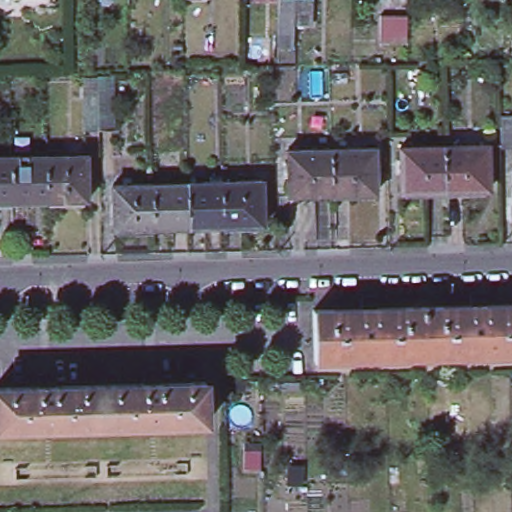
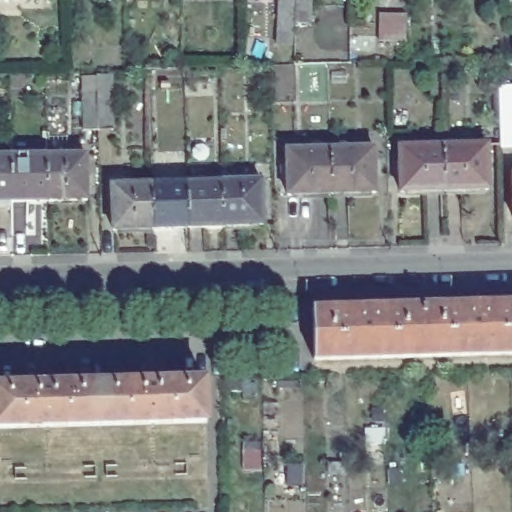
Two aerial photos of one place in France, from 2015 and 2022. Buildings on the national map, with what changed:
unchanged [(278,50),(277,35),(280,0),(296,0),(311,0),(310,35),(295,35),(295,50),(278,50)]
unchanged [(407,14),(407,42),(381,42),(382,15),(407,14)]
unchanged [(83,93),(100,92),(99,73),(114,72),(115,130),(100,130),(83,131),(83,93)]
unchanged [(500,120),(512,120),(512,152),(501,153),(500,120)]
unchanged [(489,142),(487,187),(445,188),(445,143),(489,142)]
unchanged [(445,143),(445,188),(401,189),(400,144),(445,143)]
unchanged [(374,144),(375,189),(331,190),(331,151),(331,145),(374,144)]
unchanged [(286,146),(331,145),(331,151),(331,190),(287,191),(286,146)]
unchanged [(87,152),(87,198),(47,198),(47,189),(47,153),(87,152)]
unchanged [(47,189),(47,198),(12,199),(12,185),(12,154),(47,153),(47,189)]
unchanged [(12,154),(12,185),(12,199),(0,199),(0,155),(12,154)]
unchanged [(217,224),(217,178),(255,177),(257,222),(217,224)]
unchanged [(183,226),(182,183),(181,179),(217,178),(217,224),(183,226)]
unchanged [(148,227),(148,214),(147,180),(181,179),(182,183),(183,226),(148,227)]
unchanged [(110,229),(108,181),(147,180),(148,214),(148,227),(110,229)]
unchanged [(362,297),(376,296),(376,305),(471,302),(470,293),(485,293),(485,302),(512,301),(512,353),(315,358),(313,307),(362,305),(362,297)]
unchanged [(35,389),(38,389),(37,379),(52,378),(53,388),(136,386),(143,386),(142,376),(158,375),(158,385),(205,384),(205,425),(137,427),(35,430),(0,431),(0,390),(35,389)]

